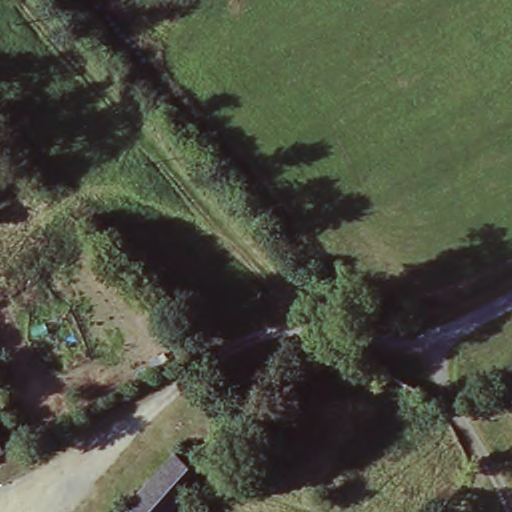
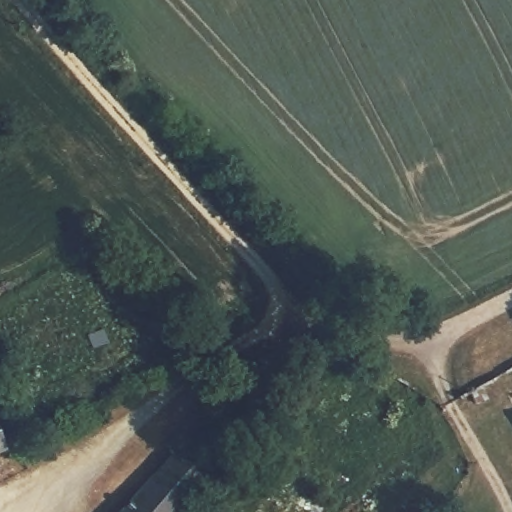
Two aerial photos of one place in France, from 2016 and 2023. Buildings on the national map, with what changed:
unchanged [(0,450),(0,442),(3,449),(0,450)]
unchanged [(175,506),(170,502),(161,512),(113,512),(166,453),(177,461),(196,480),(175,506)]

